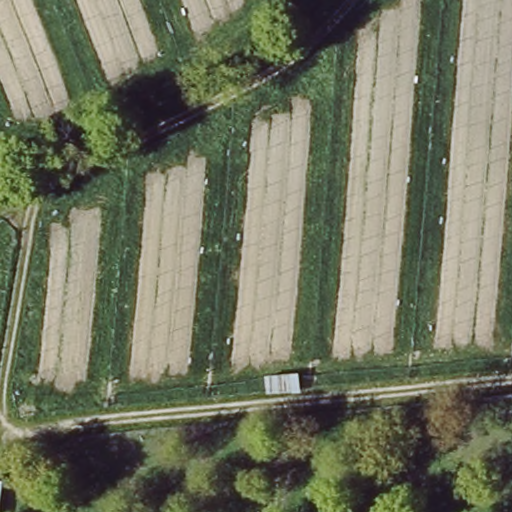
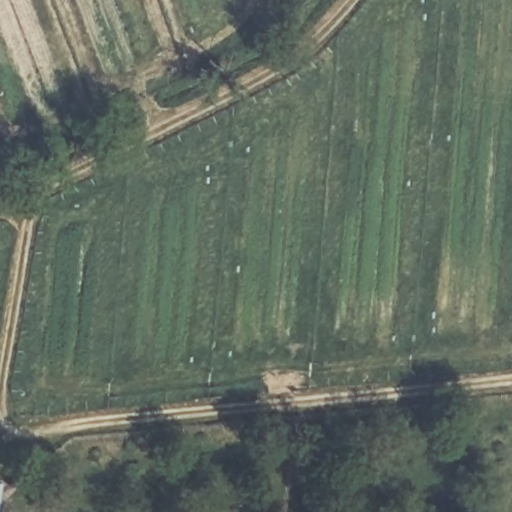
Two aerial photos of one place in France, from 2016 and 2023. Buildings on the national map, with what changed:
unchanged [(303,374),(305,397),(268,399),(266,377),(303,374)]
unchanged [(4,512),(0,512),(0,483),(9,485),(4,512)]

